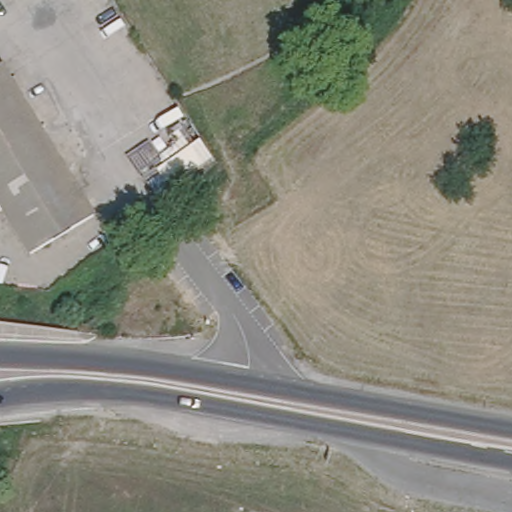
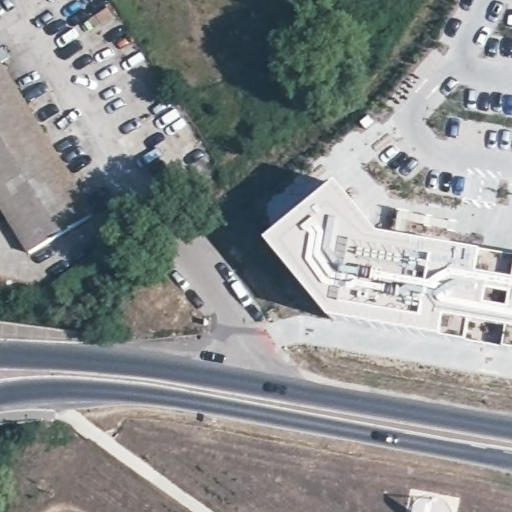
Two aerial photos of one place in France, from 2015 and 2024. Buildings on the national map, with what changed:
unchanged [(0,62),(1,61),(93,212),(32,249),(0,198),(0,62)]
new [(217,164),(157,201),(120,142),(180,103),(217,164)]
new [(341,185),(384,237),(512,259),(512,353),(444,341),(333,322),(270,243),(341,185)]

